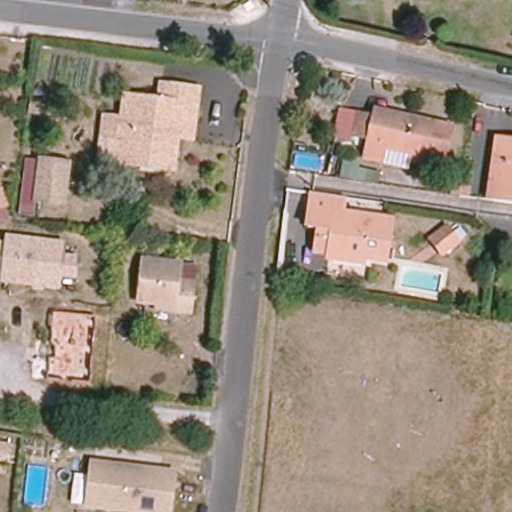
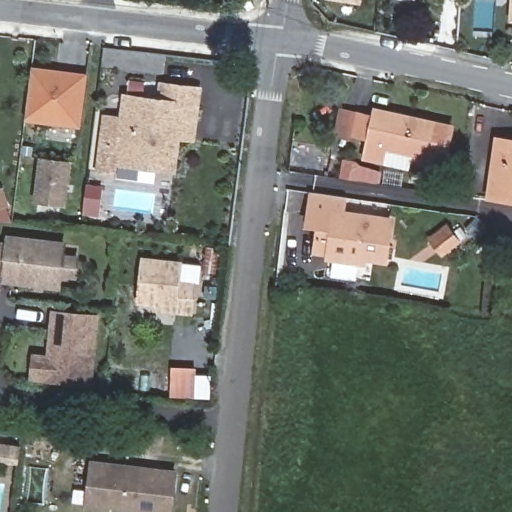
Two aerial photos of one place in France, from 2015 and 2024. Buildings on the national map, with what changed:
new [(362,2),(343,0),(362,0),(362,2)]
new [(510,20),(511,0),(512,0),(512,21),(510,20)]
new [(30,67),(83,74),(77,124),(24,116),(30,67)]
unchanged [(117,164),(123,119),(125,96),(160,100),(162,84),(199,87),(195,108),(192,139),(179,138),(175,171),(162,170),(163,165),(148,162),(148,167),(117,164)]
unchanged [(386,110),(434,120),(426,155),(385,146),(385,149),(382,160),(362,155),(367,136),(352,133),(357,110),(384,116),(386,110)]
unchanged [(117,164),(109,175),(94,173),(100,115),(123,119),(117,164)]
unchanged [(454,122),(445,169),(405,162),(403,168),(383,162),(385,149),(426,155),(429,156),(437,121),(454,122)]
unchanged [(512,141),(512,203),(489,200),(494,161),(503,162),(506,140),(512,141)]
unchanged [(43,203),(39,220),(17,216),(24,179),(25,156),(41,156),(71,161),(65,205),(43,203)]
unchanged [(469,197),(461,196),(452,195),(455,165),(464,166),(473,167),(469,197)]
unchanged [(0,220),(0,190),(6,206),(9,222),(0,220)]
unchanged [(318,229),(307,226),(312,191),(320,192),(348,196),(346,211),(392,218),(386,260),(363,257),(362,262),(328,257),(329,253),(315,251),(318,229)]
unchanged [(449,224),(462,240),(443,255),(430,238),(449,224)]
unchanged [(75,281),(63,280),(61,289),(0,285),(0,275),(0,240),(2,240),(4,235),(66,241),(64,254),(78,255),(75,281)]
unchanged [(178,305),(140,302),(144,260),(182,263),(180,281),(194,282),(192,313),(177,311),(178,305)]
unchanged [(89,382),(47,378),(49,357),(54,357),(55,346),(51,342),(54,312),(95,316),(89,382)]
unchanged [(0,461),(0,443),(9,443),(9,462),(0,461)]
unchanged [(120,512),(86,508),(91,458),(178,468),(173,512),(120,512)]

